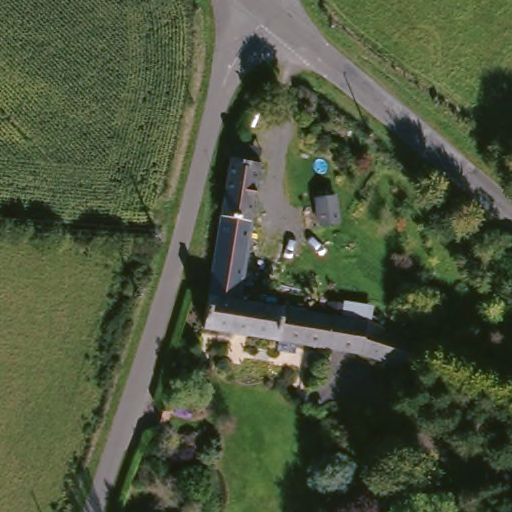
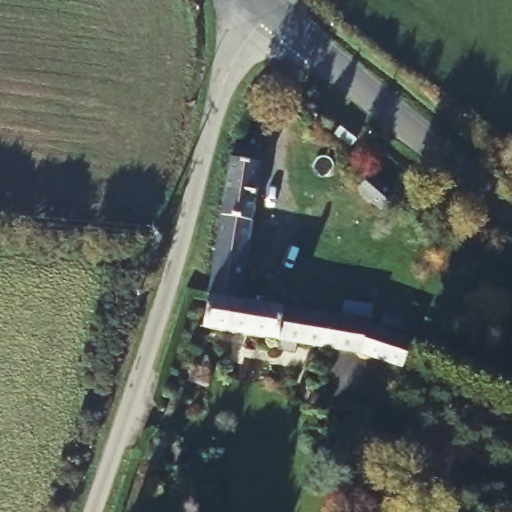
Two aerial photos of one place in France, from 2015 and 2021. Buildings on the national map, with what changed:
unchanged [(250,223),(237,303),(205,297),(225,162),(231,147),(237,147),(238,139),(261,144),(260,152),(256,167),(248,222),(250,223)]
unchanged [(364,324),(411,346),(398,370),(361,358),(201,332),(205,297),(237,303),(364,324)]

